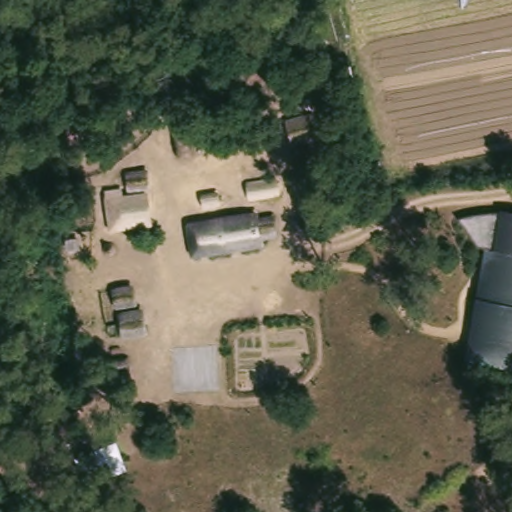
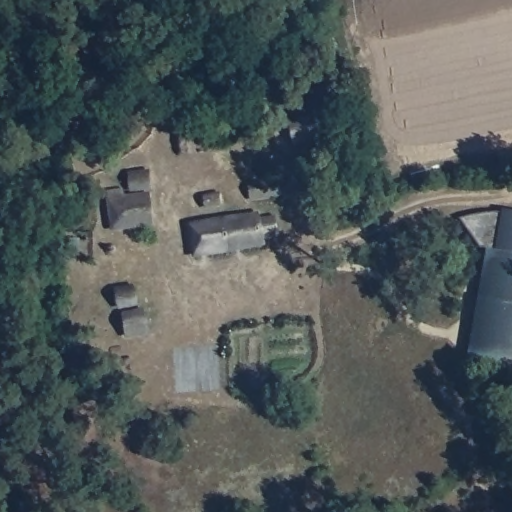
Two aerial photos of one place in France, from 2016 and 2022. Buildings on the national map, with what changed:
unchanged [(456,218),(479,213),(497,212),(498,207),(512,210),(512,259),(484,254),(456,218)]
unchanged [(255,217),(259,228),(266,227),(269,240),(260,242),(262,250),(193,262),(185,232),(255,217)]
unchanged [(512,360),(470,353),(484,254),(512,259),(512,360)]

